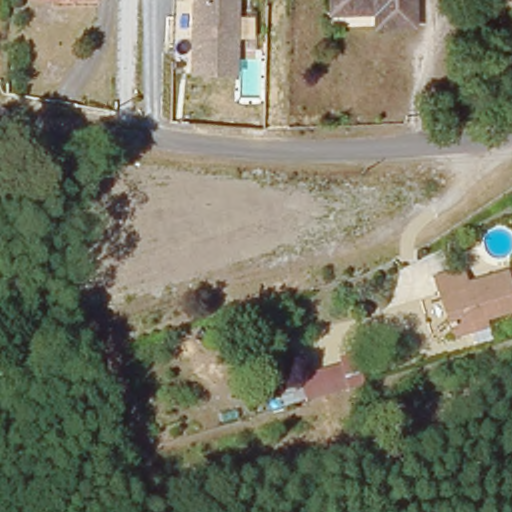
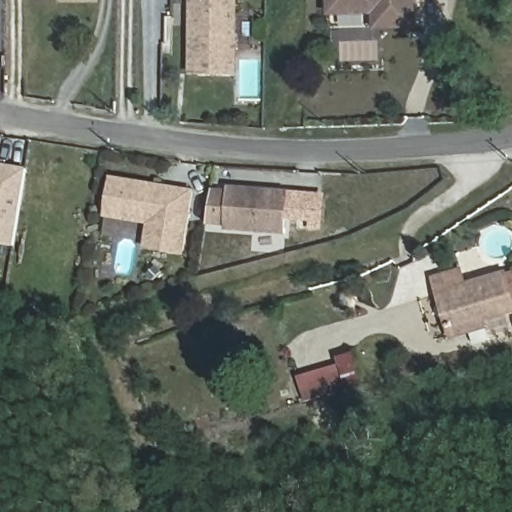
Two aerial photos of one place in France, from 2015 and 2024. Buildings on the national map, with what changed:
unchanged [(197,67),(193,0),(238,0),(241,72),(241,73),(198,75),(197,67)]
unchanged [(378,10),(334,9),(334,0),(412,0),(412,30),(377,28),(378,10)]
unchanged [(512,7),(512,30),(498,30),(496,7),(512,7)]
new [(0,246),(0,164),(27,168),(15,248),(0,246)]
new [(184,255),(144,248),(147,224),(105,217),(112,175),(195,189),(184,255)]
new [(286,234),(223,230),(224,224),(208,223),(214,188),(228,189),(229,186),(289,189),(286,234)]
unchanged [(484,318),(487,330),(455,336),(437,276),(467,268),(471,283),(512,274),(512,312),(484,318)]

